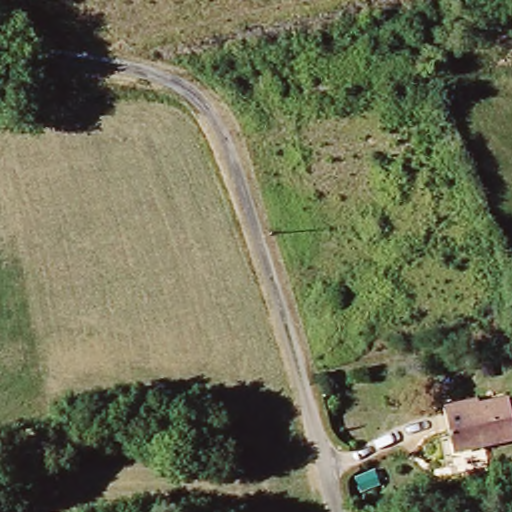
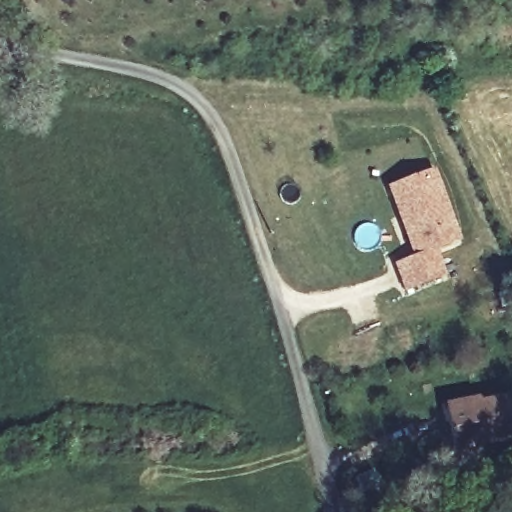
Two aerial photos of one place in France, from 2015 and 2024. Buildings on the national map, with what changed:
new [(461,240),(436,250),(446,275),(404,292),(393,264),(412,257),(386,187),(434,169),(461,240)]
unchanged [(458,450),(449,402),(481,397),(482,405),(512,398),(512,439),(458,450)]

